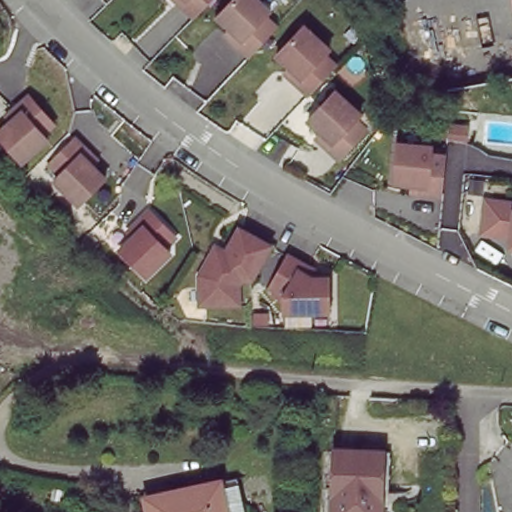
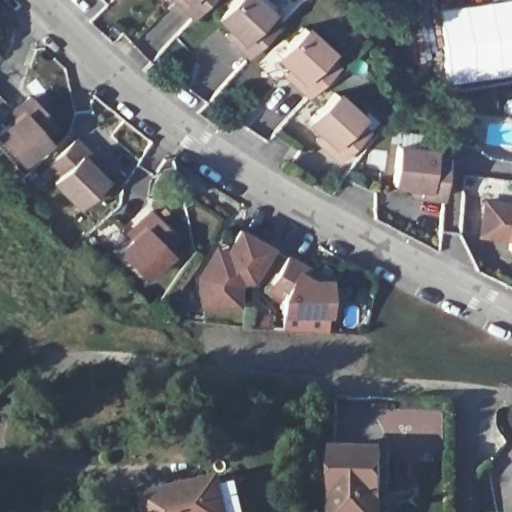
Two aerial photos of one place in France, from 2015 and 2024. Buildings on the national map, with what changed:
unchanged [(195,17),(179,2),(176,0),(210,0),(195,17)]
unchanged [(233,26),(220,13),(232,0),(264,0),(273,7),(267,14),(279,24),(251,54),(235,38),(228,32),(233,26)]
new [(435,7),(482,0),(512,0),(512,76),(447,85),(435,7)]
unchanged [(292,67),(279,54),(306,25),(332,49),(326,55),(337,65),(310,94),(294,79),(287,72),(292,67)]
unchanged [(323,131),(309,119),(336,90),(362,114),(356,119),(367,129),(341,158),(324,143),(317,137),(323,131)]
unchanged [(51,122),(40,132),(44,137),(19,161),(0,140),(0,127),(7,121),(2,116),(9,109),(26,94),(51,122)]
unchanged [(93,163),(89,167),(102,181),(76,207),(51,184),(56,178),(46,167),(71,142),(87,157),(93,163)]
unchanged [(411,187),(393,184),(398,145),(433,149),(432,157),(447,159),(442,198),(420,195),(410,194),(411,187)]
unchanged [(499,203),(512,205),(512,239),(494,237),(499,203)]
unchanged [(145,279),(115,250),(141,224),(136,217),(147,207),(182,241),(145,279)]
unchanged [(198,286),(198,272),(212,248),(214,244),(225,250),(238,226),(270,244),(250,277),(240,277),(237,283),(238,302),(204,303),(199,303),(198,286)]
unchanged [(329,311),(284,311),(284,295),(269,287),(287,254),(309,266),(321,273),(321,277),(329,277),(329,311)]
unchanged [(375,512),(326,512),(329,447),(378,449),(375,512)]
unchanged [(236,512),(140,512),(137,500),(229,480),(236,512)]

